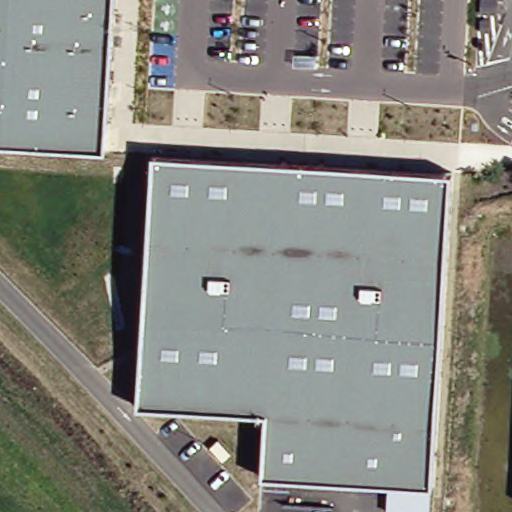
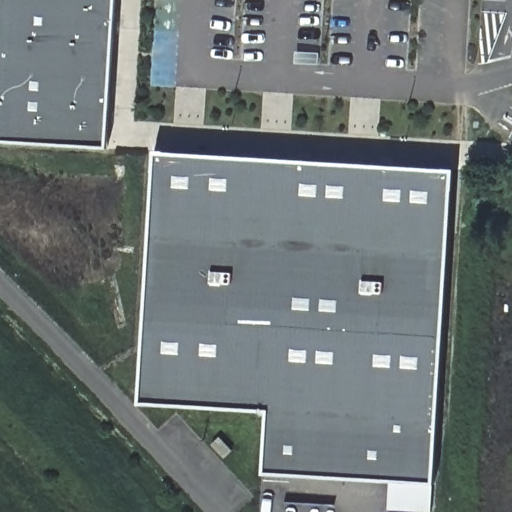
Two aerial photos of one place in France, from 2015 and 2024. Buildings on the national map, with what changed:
unchanged [(0,142),(0,0),(115,0),(106,149),(0,142)]
unchanged [(452,172),(432,484),(431,512),(387,509),(388,483),(262,474),(267,413),(140,404),(154,153),(452,172)]

